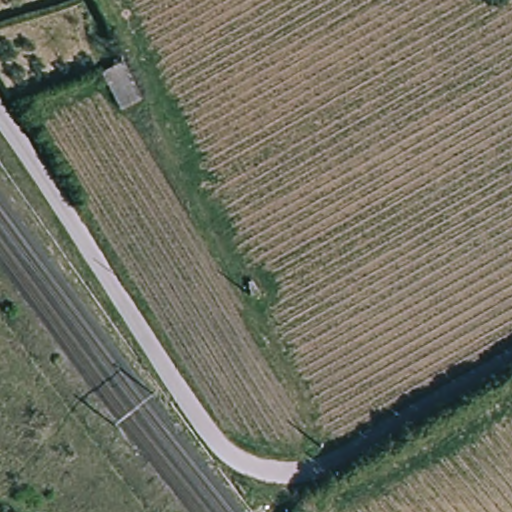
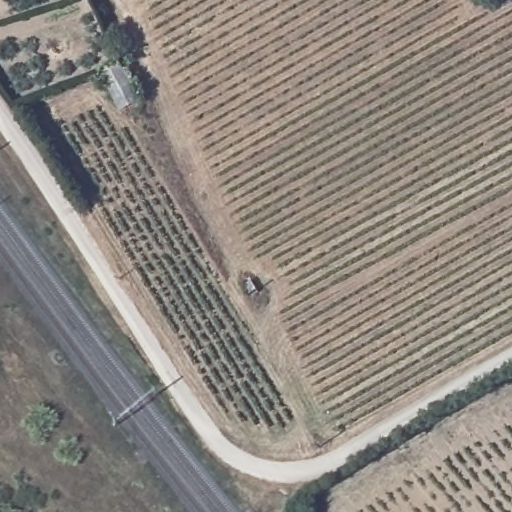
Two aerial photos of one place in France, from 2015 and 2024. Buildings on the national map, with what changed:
unchanged [(122,66),(140,103),(120,114),(100,78),(122,66)]
unchanged [(250,288),(256,301),(250,303),(245,291),(250,288)]

